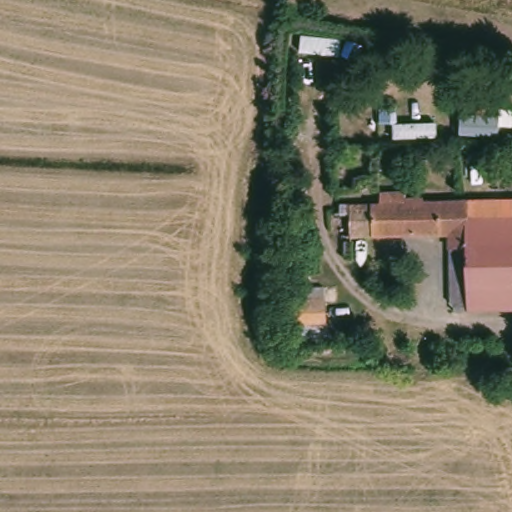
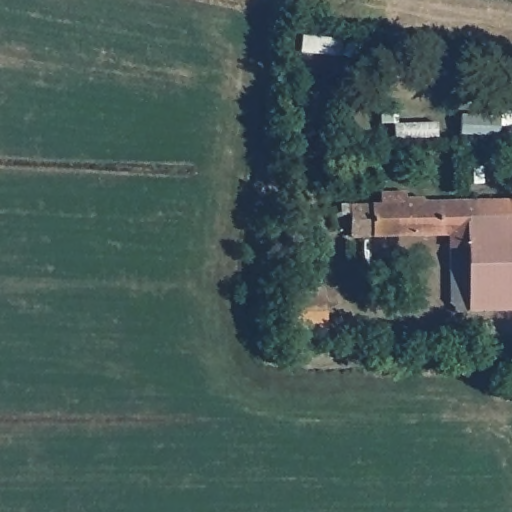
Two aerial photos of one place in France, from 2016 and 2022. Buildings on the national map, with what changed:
unchanged [(350,241),(349,217),(357,216),(357,207),(432,208),(512,206),(512,240),(475,241),(350,241)]
unchanged [(473,316),(473,313),(475,252),(475,241),(512,240),(512,316),(473,316)]
unchanged [(327,296),(326,344),(302,344),(302,331),(288,331),(289,294),(327,296)]
unchanged [(512,357),(512,382),(498,383),(496,359),(512,357)]

